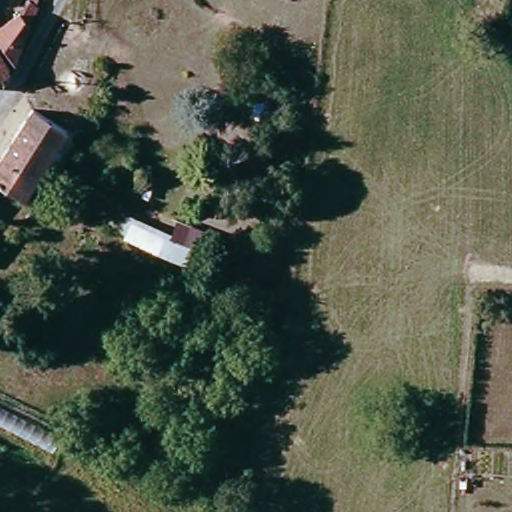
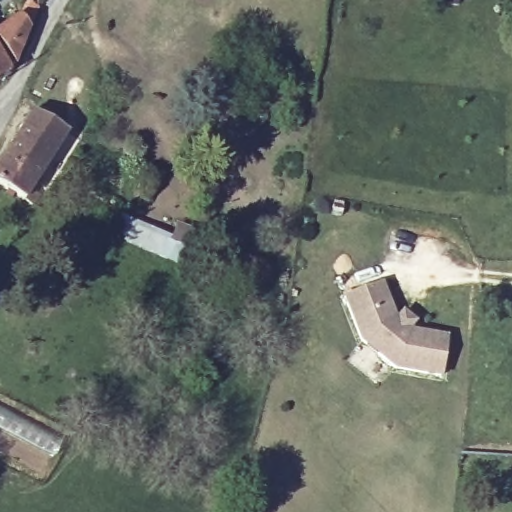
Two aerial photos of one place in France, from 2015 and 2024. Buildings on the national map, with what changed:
unchanged [(20,71),(0,40),(0,39),(39,2),(47,12),(20,71)]
unchanged [(12,75),(0,83),(0,57),(12,75)]
unchanged [(34,187),(45,194),(37,205),(6,187),(0,183),(0,165),(31,114),(66,133),(34,187)]
unchanged [(119,216),(198,256),(190,275),(111,237),(119,216)]
new [(385,282),(397,316),(403,310),(418,321),(412,328),(448,335),(442,378),(393,370),(359,342),(342,296),(385,282)]

